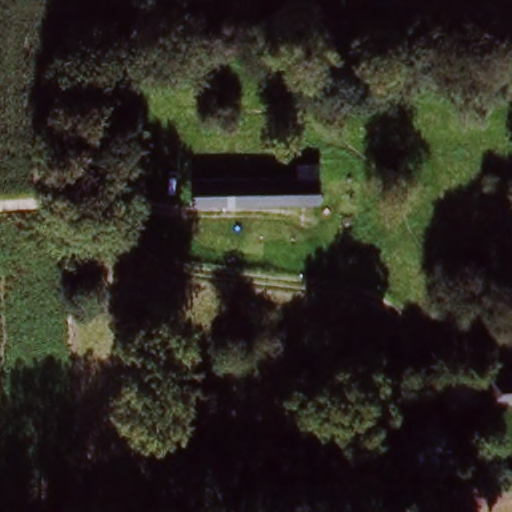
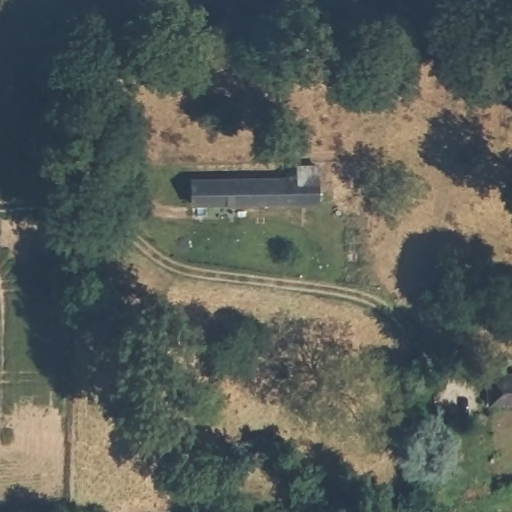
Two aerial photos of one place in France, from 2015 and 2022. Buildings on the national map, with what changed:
unchanged [(181,188),(323,186),(323,208),(182,209),(181,188)]
unchanged [(512,377),(512,400),(490,400),(490,377),(512,377)]
unchanged [(226,444),(287,441),(287,456),(226,459),(226,444)]

